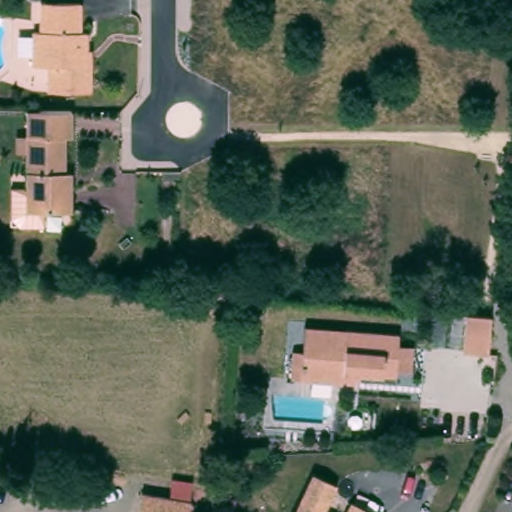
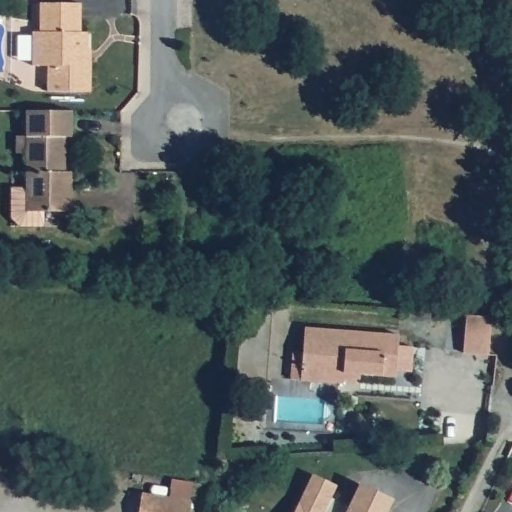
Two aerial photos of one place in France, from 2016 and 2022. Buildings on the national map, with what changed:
unchanged [(41,30),(41,2),(85,5),(84,31),(90,31),(89,55),(93,56),(92,90),(50,89),(51,67),(29,67),(30,30),(41,30)]
unchanged [(52,136),(52,167),(57,168),(56,186),(65,186),(65,210),(14,209),(16,135),(52,136)]
unchanged [(490,318),(487,345),(464,342),(470,316),(490,318)]
unchanged [(400,345),(417,345),(413,371),(396,369),(395,373),(362,370),(361,379),(345,376),(343,387),(301,382),(290,381),(293,352),(305,352),(308,328),(350,333),(401,336),(400,345)]
unchanged [(335,483),(323,512),(317,512),(300,503),(314,475),(335,483)]
unchanged [(190,512),(138,512),(141,490),(191,497),(190,512)]
unchanged [(316,512),(296,512),(300,503),(316,512)]
unchanged [(369,512),(350,512),(355,504),(369,512)]

